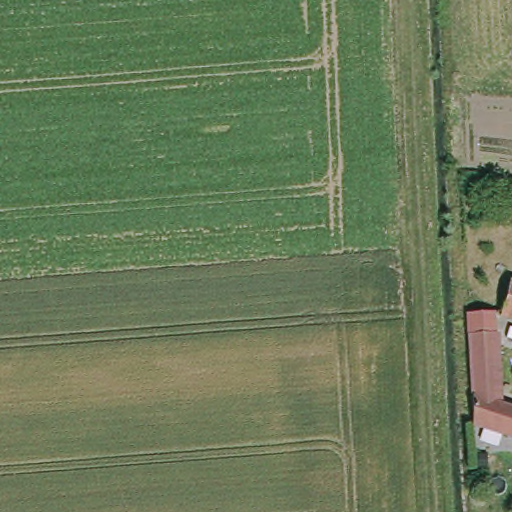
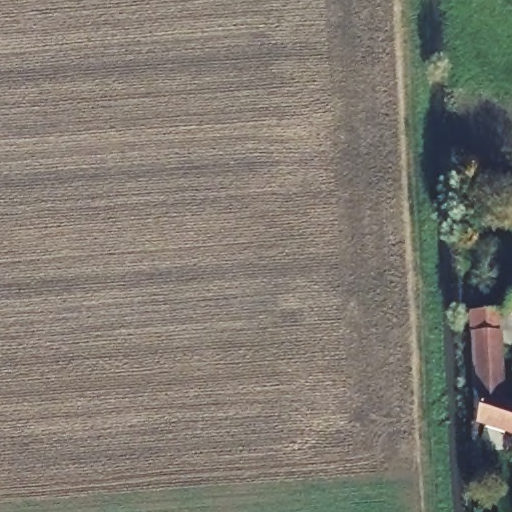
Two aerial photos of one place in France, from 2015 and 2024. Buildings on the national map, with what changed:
unchanged [(500,311),(508,282),(512,283),(512,314),(500,311)]
unchanged [(498,402),(512,406),(512,434),(473,421),(468,312),(493,311),(498,402)]

